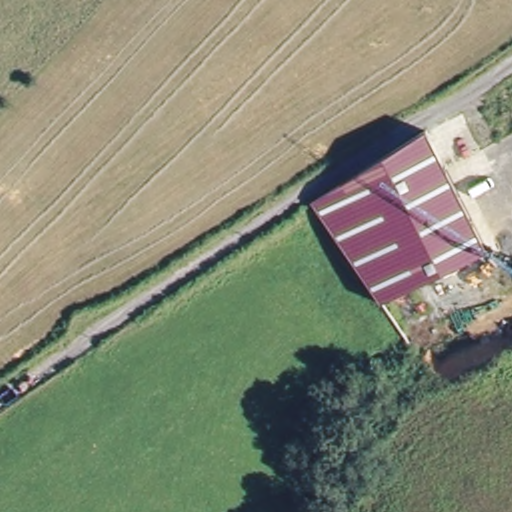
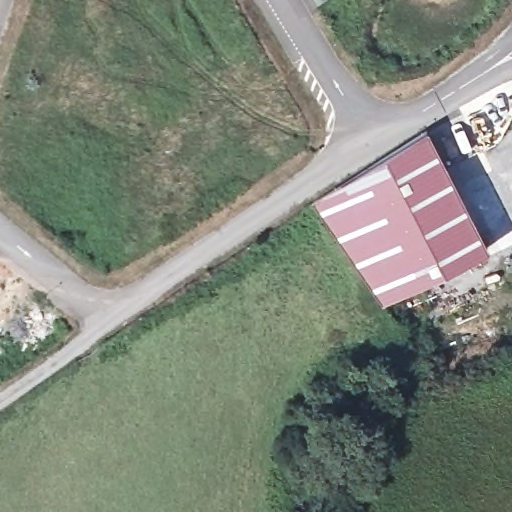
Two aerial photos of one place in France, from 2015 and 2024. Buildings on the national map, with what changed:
unchanged [(494,242),(377,310),(306,199),(425,128),(494,242)]

